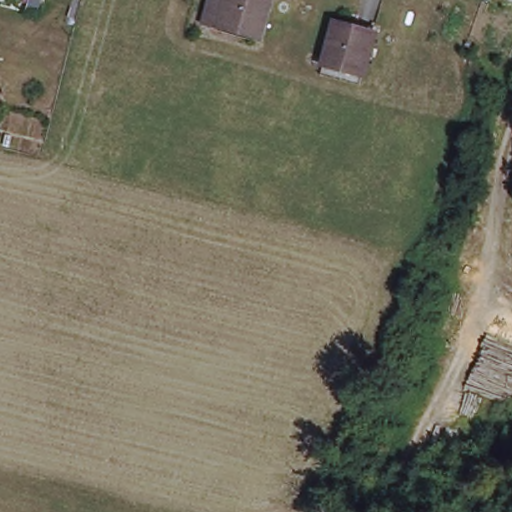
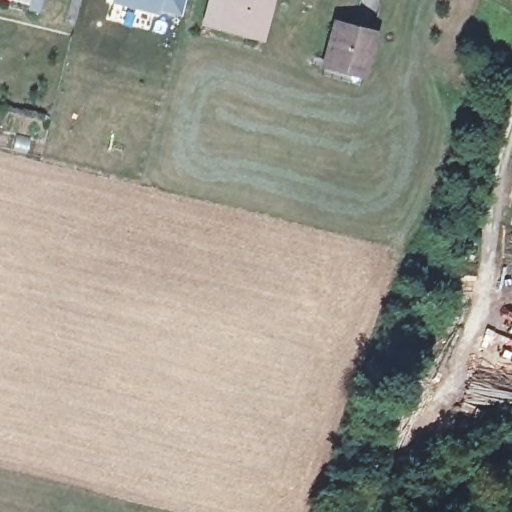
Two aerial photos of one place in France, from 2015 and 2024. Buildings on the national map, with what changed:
new [(184,0),(180,17),(109,1),(109,0),(184,0)]
unchanged [(223,23),(221,29),(205,24),(212,0),(270,0),(261,33),(223,23)]
unchanged [(324,60),(334,24),(373,35),(363,71),(324,60)]

